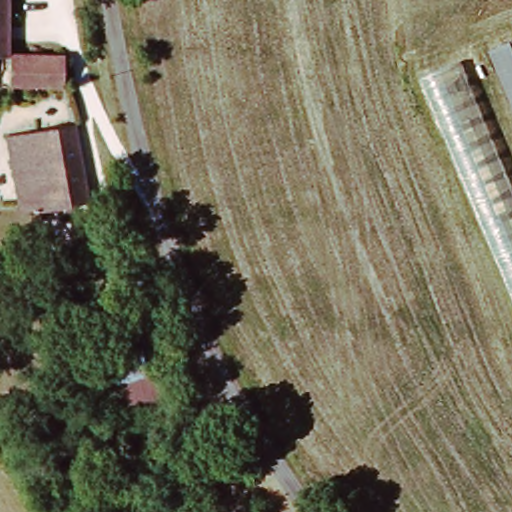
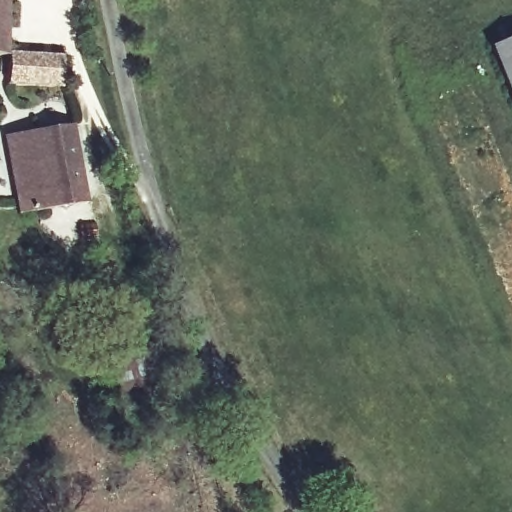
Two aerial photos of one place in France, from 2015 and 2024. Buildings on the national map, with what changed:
unchanged [(0,0),(15,0),(14,53),(0,52),(0,0)]
unchanged [(501,50),(512,45),(512,77),(501,50)]
unchanged [(71,84),(14,83),(14,53),(72,55),(71,84)]
demolished [(512,168),(512,283),(428,78),(467,63),(512,168)]
unchanged [(94,206),(27,219),(10,141),(78,128),(94,206)]
new [(157,397),(125,407),(110,360),(142,349),(157,397)]

